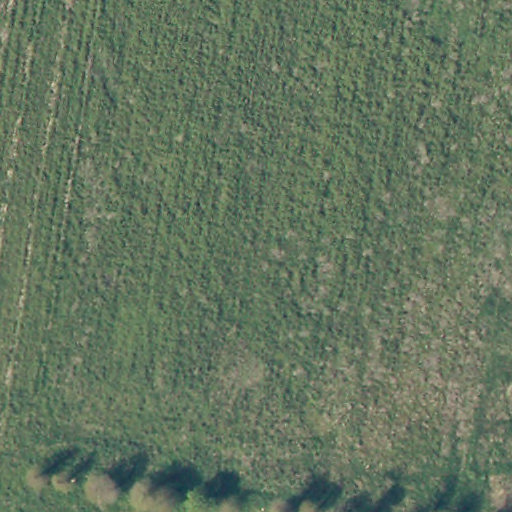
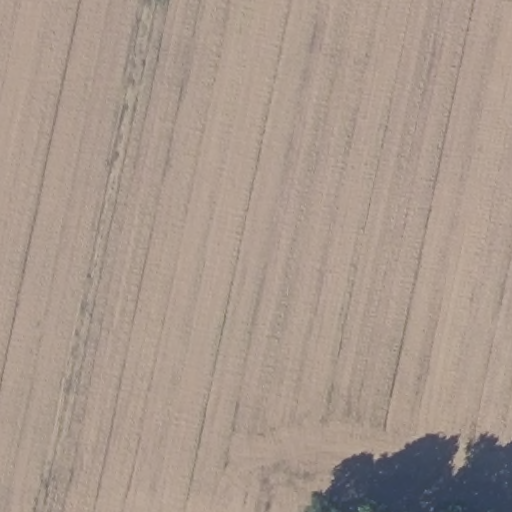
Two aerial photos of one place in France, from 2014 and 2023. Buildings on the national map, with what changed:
[]

